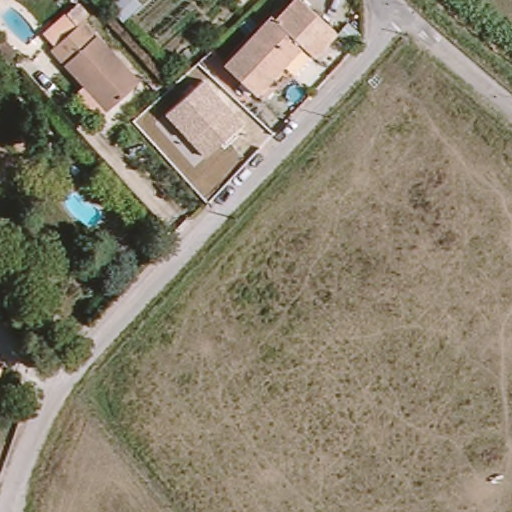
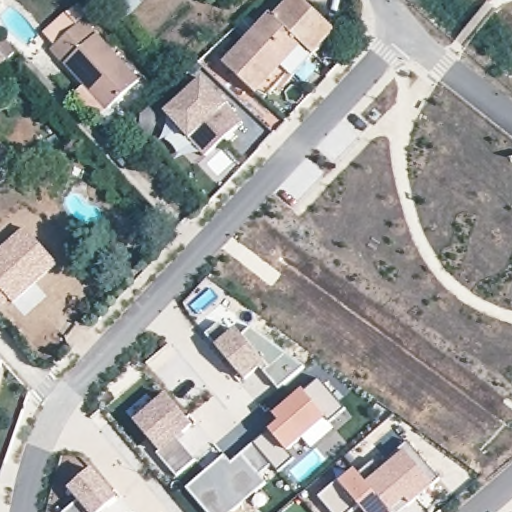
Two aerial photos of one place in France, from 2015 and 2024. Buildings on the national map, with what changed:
unchanged [(228,63),(271,19),(279,26),(294,13),(306,1),(323,20),(338,38),(296,78),(293,74),(265,99),(261,103),(228,63)]
unchanged [(79,91),(90,79),(65,55),(95,23),(150,80),(120,110),(109,121),(79,91)]
unchanged [(202,81),(224,106),(243,125),(207,159),(189,139),(166,113),(202,81)]
new [(10,300),(0,309),(0,251),(26,228),(59,265),(15,305),(10,300)]
new [(241,335),(251,326),(308,368),(279,392),(260,369),(245,381),(213,345),(206,335),(221,324),(230,332),(235,328),(241,335)]
new [(253,443),(268,430),(276,422),(273,416),(303,390),(316,379),(341,406),(326,419),(303,440),(288,453),(293,459),(278,473),(273,467),(263,477),(268,482),(234,512),(205,512),(184,488),(223,454),(231,462),(253,443)]
new [(158,456),(132,421),(166,393),(196,425),(215,446),(197,461),(176,479),(158,456)]
new [(316,497),(338,482),(355,469),(366,482),(406,450),(435,482),(421,496),(397,512),(363,512),(359,507),(353,512),(330,512),(316,497)]
new [(91,468),(119,499),(103,512),(88,512),(76,500),(66,488),(91,468)]
new [(76,500),(88,512),(63,512),(76,500)]

